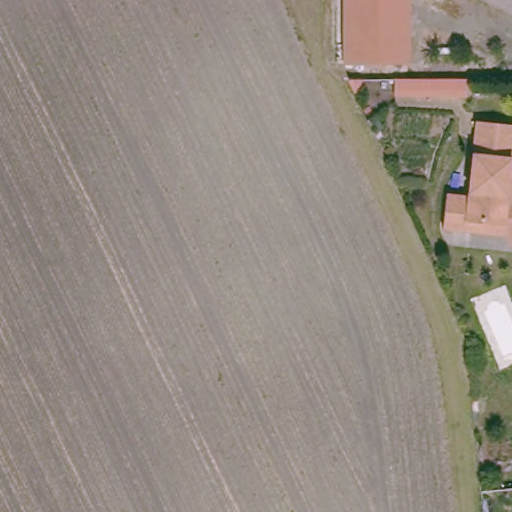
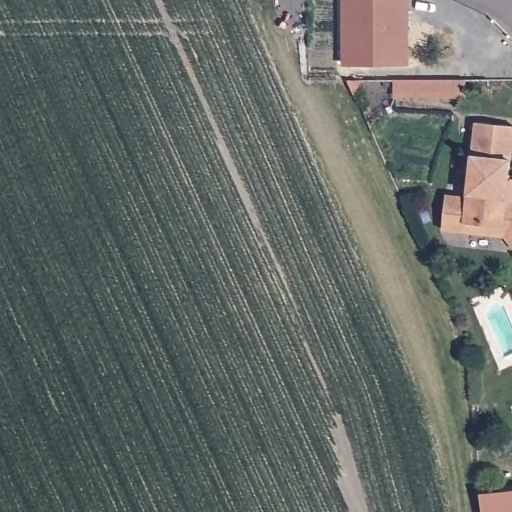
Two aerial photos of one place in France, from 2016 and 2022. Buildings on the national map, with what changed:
unchanged [(343,61),(342,0),(409,0),(409,62),(343,61)]
unchanged [(468,79),(469,97),(395,96),(395,79),(468,79)]
unchanged [(512,200),(512,243),(505,233),(441,226),(443,194),(466,196),(471,124),(512,127),(508,200),(512,200)]
new [(512,512),(481,512),(480,496),(512,493),(512,512)]

